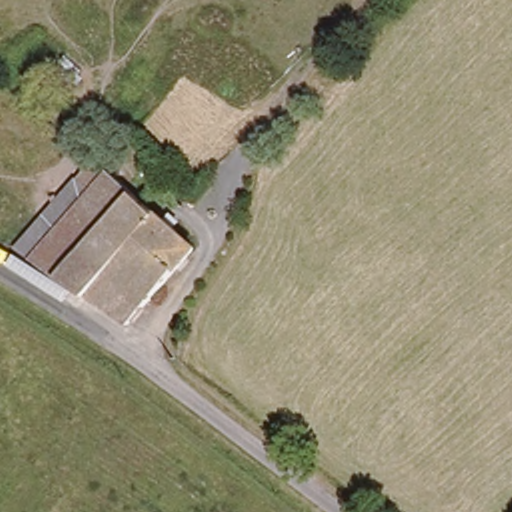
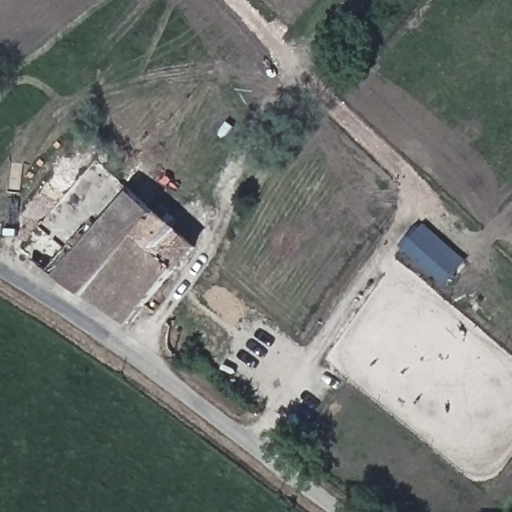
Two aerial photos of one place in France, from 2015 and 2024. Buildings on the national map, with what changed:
unchanged [(16,249),(93,159),(195,248),(126,324),(16,249)]
new [(399,244),(418,223),(463,263),(445,283),(399,244)]

